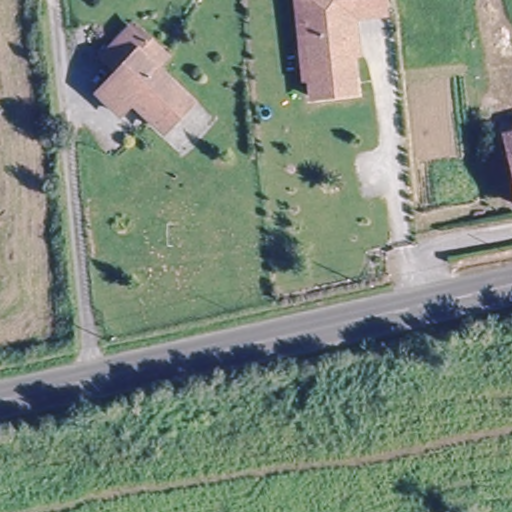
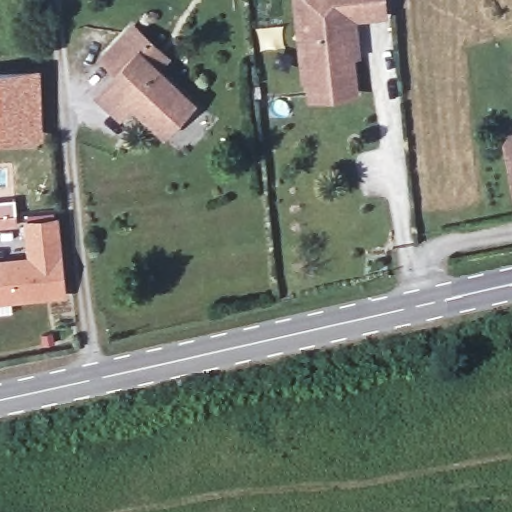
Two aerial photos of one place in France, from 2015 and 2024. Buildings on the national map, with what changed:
unchanged [(300,83),(299,71),(291,0),(373,0),(375,17),(344,20),(347,42),(342,43),(345,66),(347,80),(300,83)]
unchanged [(164,58),(154,71),(191,102),(167,132),(130,103),(119,118),(97,100),(119,74),(103,60),(130,29),(164,58)]
new [(44,140),(0,142),(0,71),(41,70),(44,140)]
unchanged [(512,129),(512,196),(498,132),(512,129)]
new [(26,255),(23,219),(59,215),(67,298),(0,304),(0,258),(26,255)]

